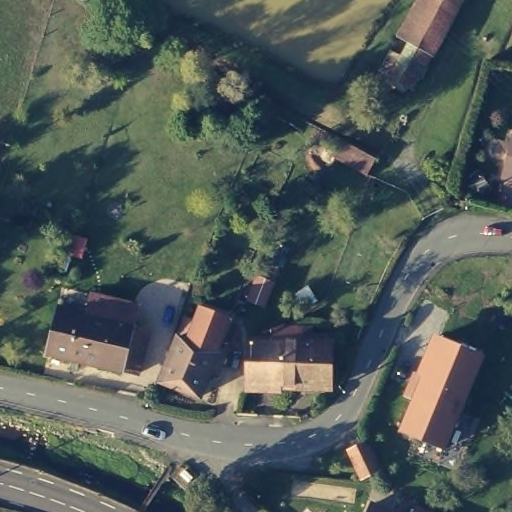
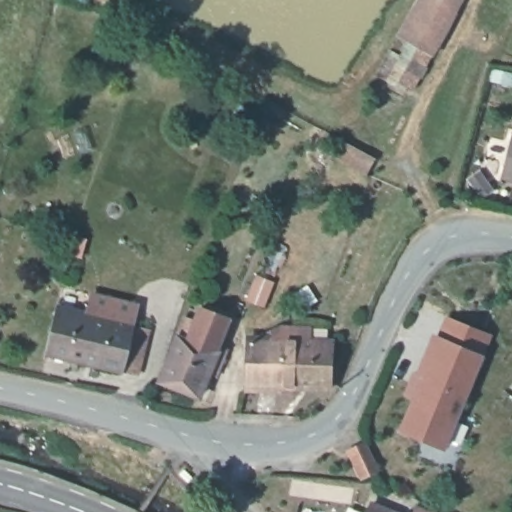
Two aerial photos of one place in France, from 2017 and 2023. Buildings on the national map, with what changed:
unchanged [(432,53),(408,99),(375,84),(387,54),(397,58),(405,42),(395,38),(415,0),(463,0),(432,53)]
unchanged [(256,273),(275,280),(264,308),(246,301),(256,273)]
unchanged [(126,362),(109,358),(108,360),(36,341),(47,296),(137,318),(126,362)]
unchanged [(215,349),(225,354),(216,375),(207,372),(197,396),(157,381),(185,317),(221,330),(215,349)]
unchanged [(248,334),(277,335),(278,321),(302,322),(301,335),(333,336),(331,380),(250,378),(250,381),(245,381),(248,334)]
unchanged [(401,426),(411,402),(402,398),(407,385),(417,389),(440,333),(482,350),(450,427),(465,433),(457,451),(442,444),(401,426)]
unchanged [(364,477),(350,447),(363,441),(376,472),(364,477)]
unchanged [(387,512),(365,512),(368,504),(387,512)]

